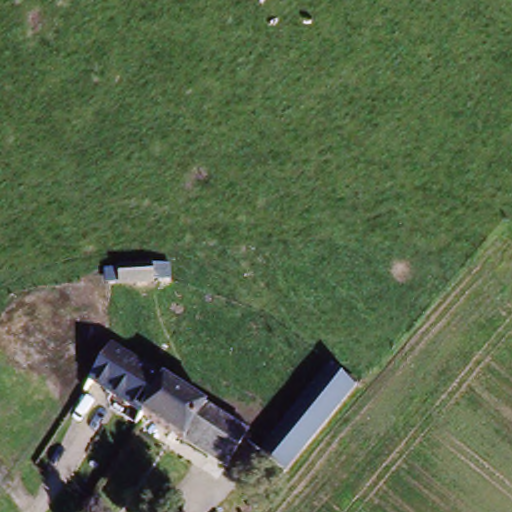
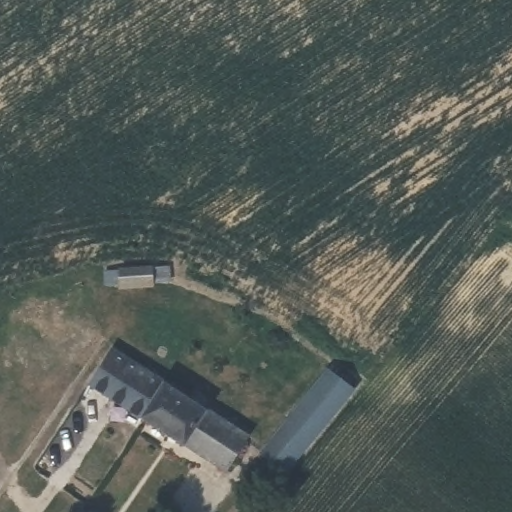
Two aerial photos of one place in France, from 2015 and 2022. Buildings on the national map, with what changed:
unchanged [(116,270),(180,270),(179,288),(118,287),(116,270)]
unchanged [(245,444),(223,475),(101,389),(122,359),(245,444)]
unchanged [(255,449),(318,372),(341,395),(279,468),(255,449)]

